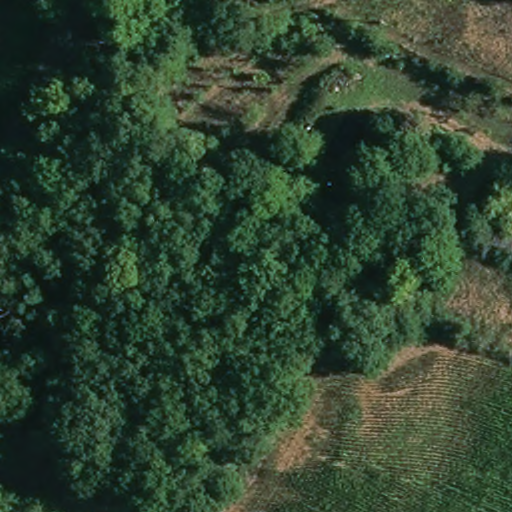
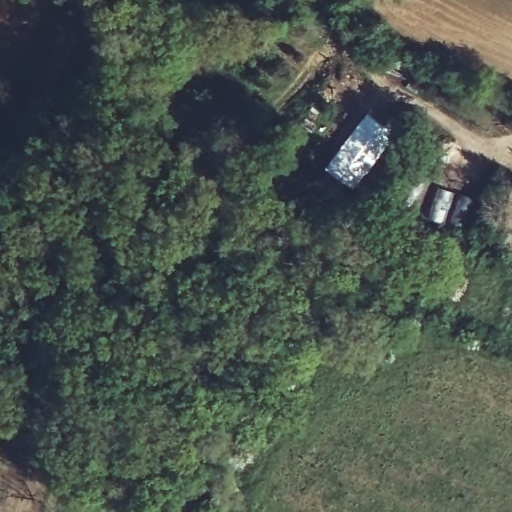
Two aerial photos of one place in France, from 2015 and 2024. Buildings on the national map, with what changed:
unchanged [(175,453),(178,438),(193,441),(190,456),(175,453)]

